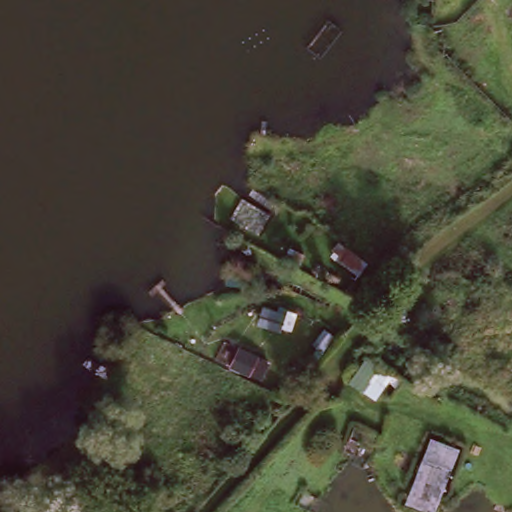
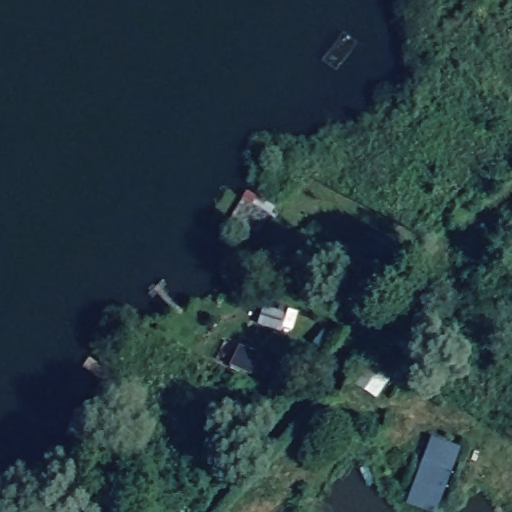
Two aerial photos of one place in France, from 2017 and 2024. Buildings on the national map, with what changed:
unchanged [(447,462),(428,512),(424,512),(407,507),(425,455),(447,462)]

